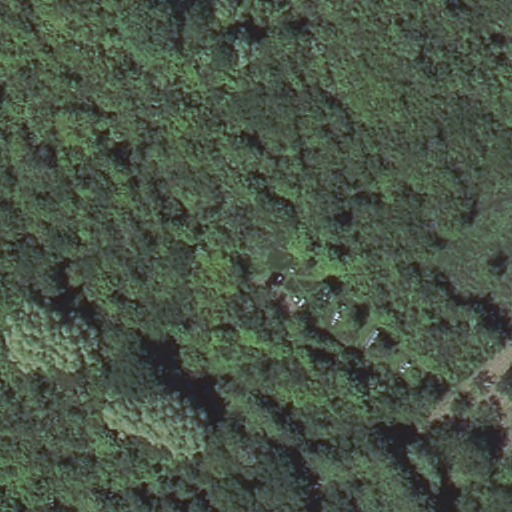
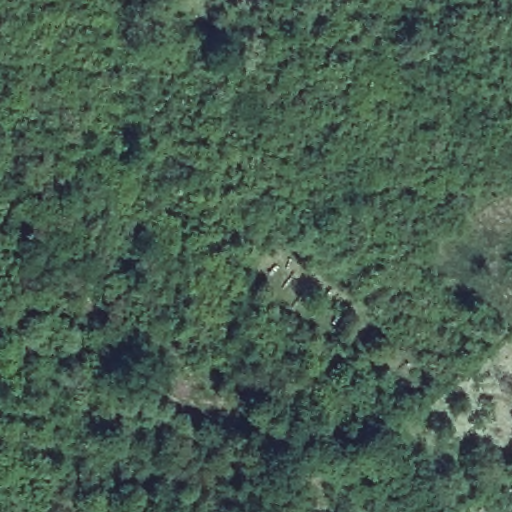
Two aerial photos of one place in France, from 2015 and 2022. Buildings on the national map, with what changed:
unchanged [(52,127),(58,139),(38,148),(31,140),(52,127)]
unchanged [(201,307),(207,303),(211,308),(205,312),(201,307)]

